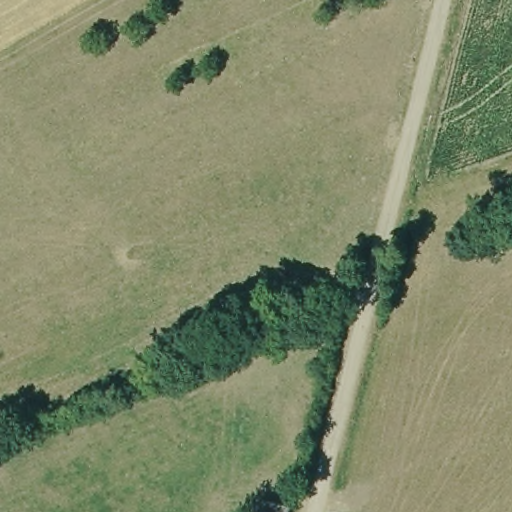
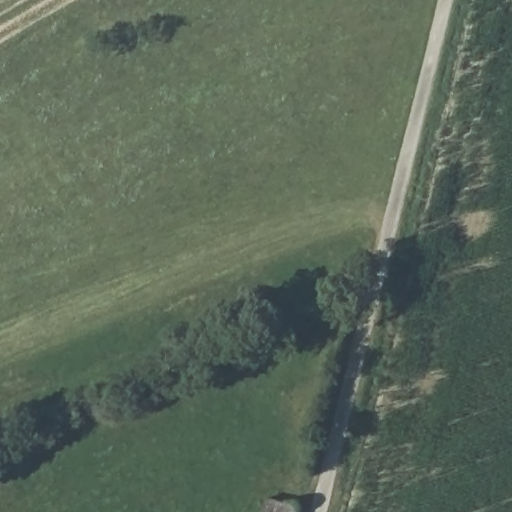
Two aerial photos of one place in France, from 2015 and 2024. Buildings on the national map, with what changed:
unchanged [(295,508),(294,512),(266,512),(270,499),(295,508)]

